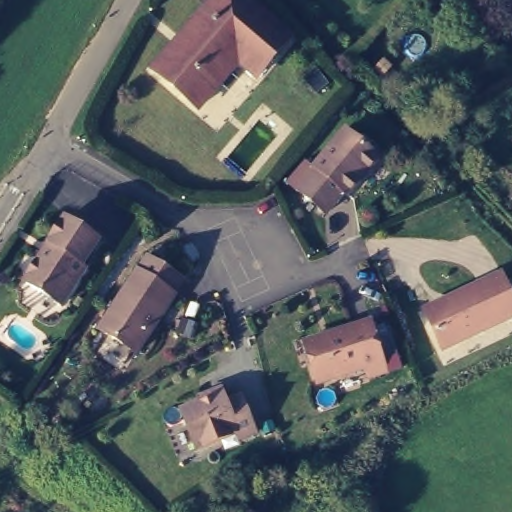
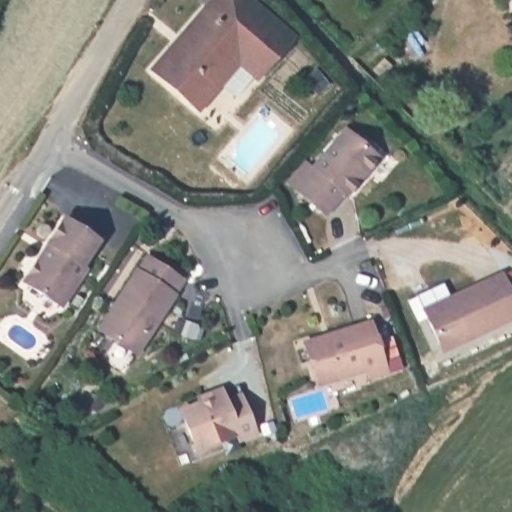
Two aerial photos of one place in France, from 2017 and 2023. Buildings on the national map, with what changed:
unchanged [(156,72),(215,0),(254,0),(272,15),(296,34),(262,75),(241,57),(220,82),(224,86),(203,111),(200,108),(156,72)]
unchanged [(320,85),(308,95),(298,84),(310,74),(320,85)]
unchanged [(350,132),(384,158),(372,172),(370,170),(364,177),(367,180),(353,196),(350,193),(334,213),(307,190),(325,168),(321,165),(350,132)]
unchanged [(25,276),(22,274),(35,253),(39,255),(62,216),(93,234),(79,258),(83,260),(60,301),(23,279),(25,276)]
unchanged [(147,252),(186,276),(141,352),(102,329),(147,252)]
unchanged [(512,296),(512,320),(446,351),(428,317),(425,310),(448,298),(500,273),(512,296)]
unchanged [(368,371),(365,363),(321,379),(313,360),(305,338),(310,336),(368,316),(384,356),(387,364),(368,371)]
unchanged [(196,330),(196,340),(180,339),(180,329),(196,330)]
unchanged [(244,395),(260,434),(243,440),(240,434),(200,449),(185,410),(203,403),(201,396),(222,387),(225,395),(228,401),(244,395)]

